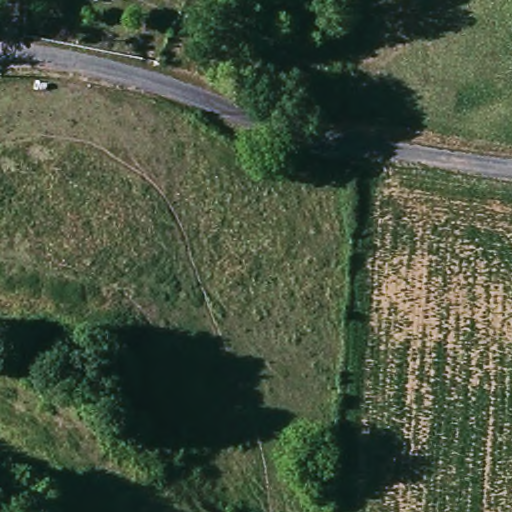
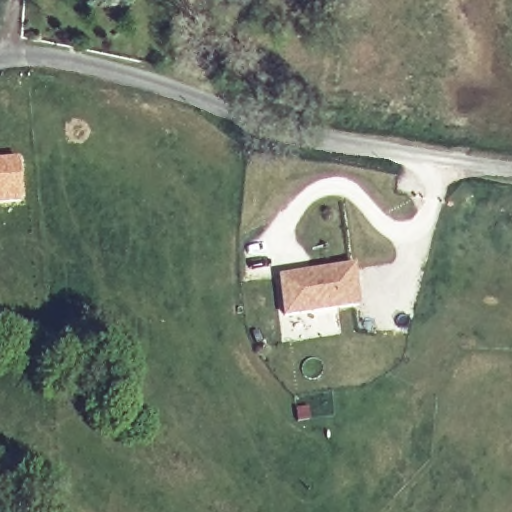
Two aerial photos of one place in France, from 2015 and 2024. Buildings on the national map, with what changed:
new [(20,203),(0,204),(0,159),(17,159),(20,203)]
new [(358,310),(282,319),(277,278),(352,268),(358,310)]
unchanged [(121,398),(137,415),(127,426),(109,410),(121,398)]

